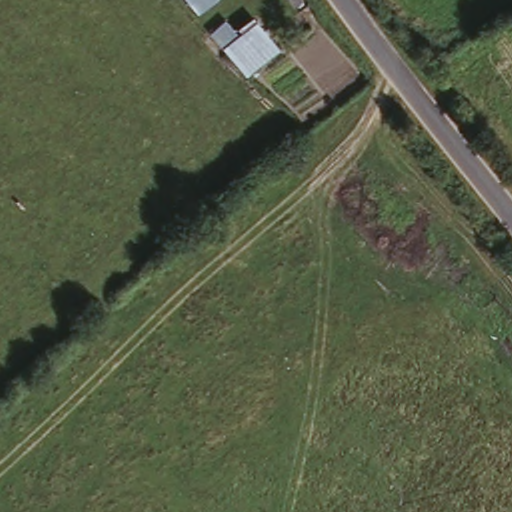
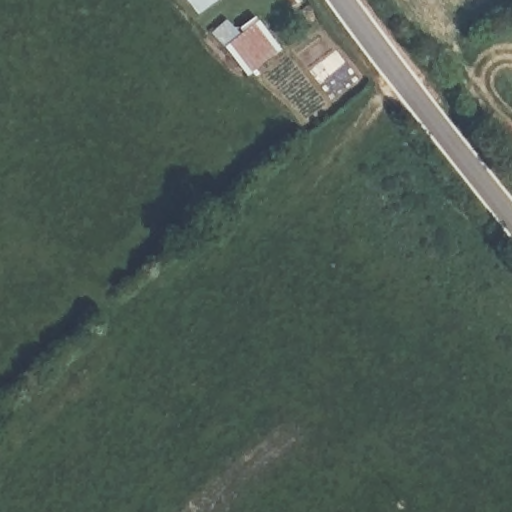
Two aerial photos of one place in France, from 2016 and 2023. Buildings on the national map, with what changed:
unchanged [(197,16),(183,0),(215,0),(197,16)]
unchanged [(209,35),(225,18),(238,33),(252,20),(278,51),(248,75),(209,35)]

